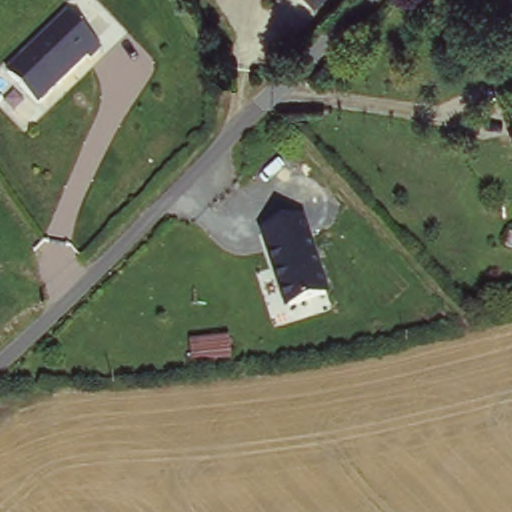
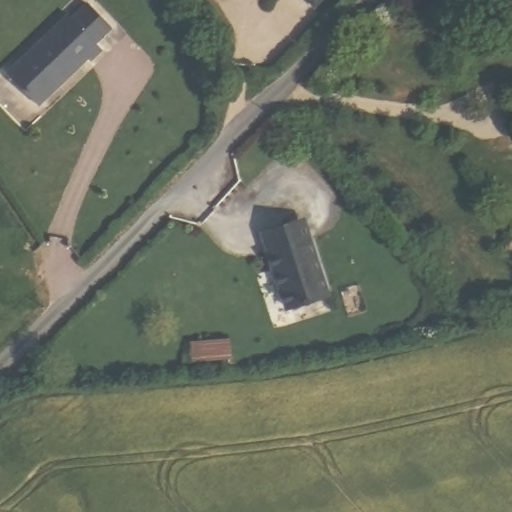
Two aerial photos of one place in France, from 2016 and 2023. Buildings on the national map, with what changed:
unchanged [(95,40),(101,45),(42,100),(12,66),(85,0),(87,0),(110,26),(95,40)]
unchanged [(313,0),(323,0),(318,5),(313,0)]
unchanged [(258,234),(303,219),(327,296),(283,311),(258,234)]
unchanged [(231,336),(236,363),(192,367),(189,341),(231,336)]

